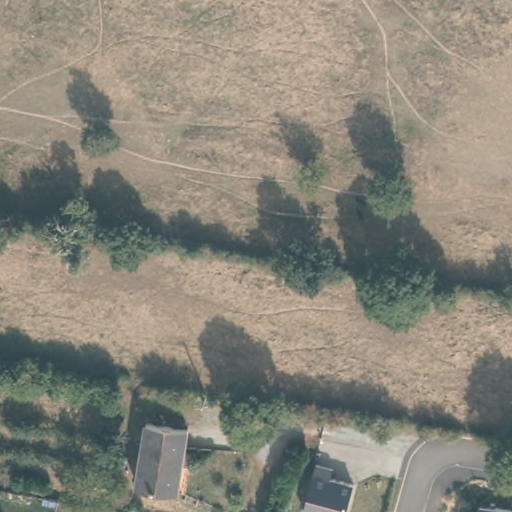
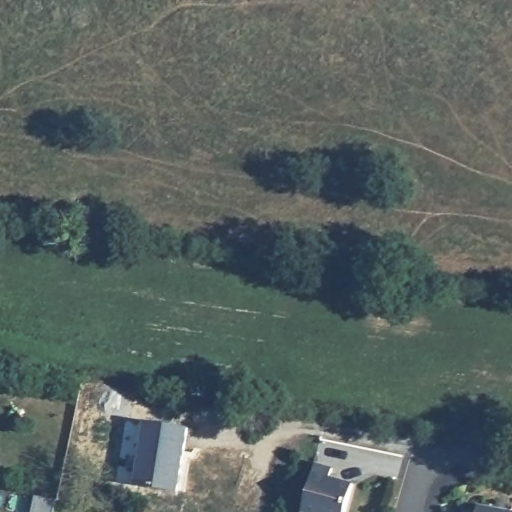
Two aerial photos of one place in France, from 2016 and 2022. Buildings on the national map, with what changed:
unchanged [(189,431),(179,492),(137,486),(146,424),(189,431)]
unchanged [(332,468),(331,475),(355,481),(346,512),(305,512),(317,466),(332,468)]

